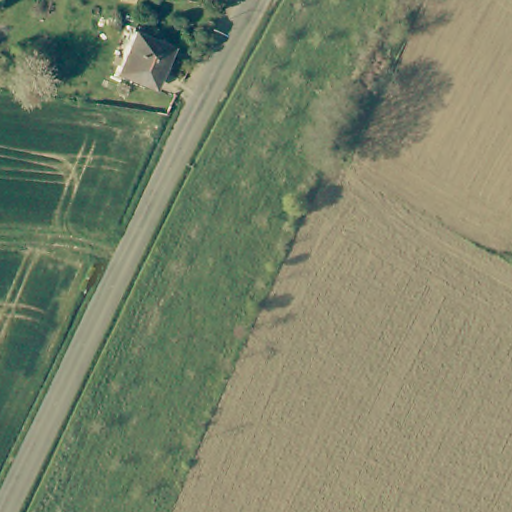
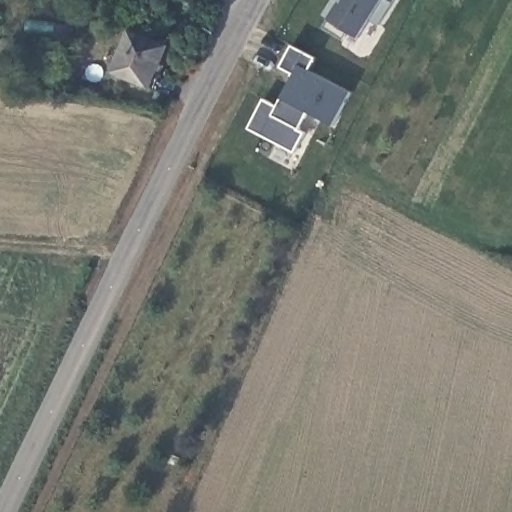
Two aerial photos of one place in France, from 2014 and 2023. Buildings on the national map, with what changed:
new [(351,35),(347,40),(329,25),(332,19),(342,3),(339,0),(397,0),(381,26),(371,21),(360,38),(351,35)]
unchanged [(179,45),(162,85),(124,70),(142,28),(179,45)]
new [(258,133),(297,74),(283,67),(296,46),(319,58),(312,69),(354,92),(335,126),(310,113),(295,154),(258,133)]

